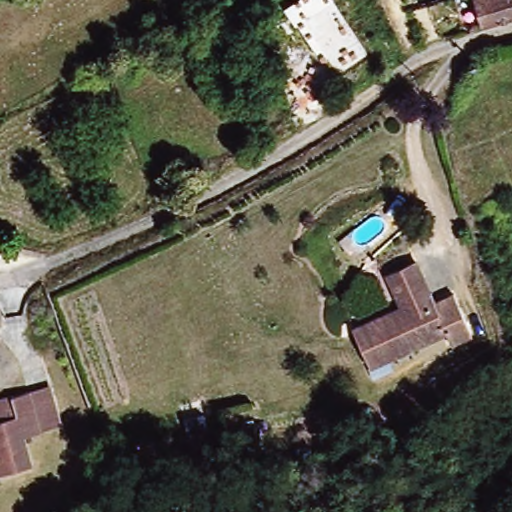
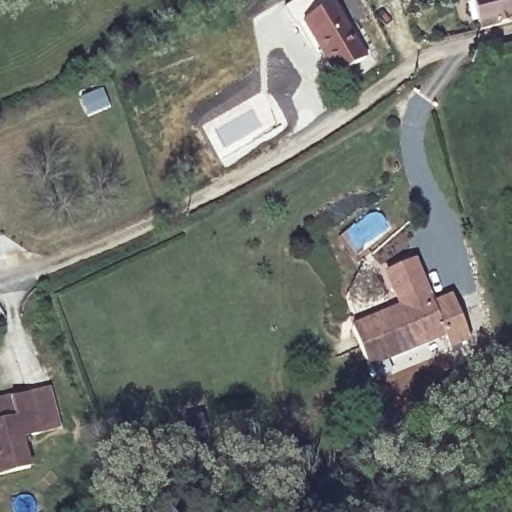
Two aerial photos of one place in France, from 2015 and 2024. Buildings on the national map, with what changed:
new [(303,0),(330,0),(369,59),(341,77),(329,62),(324,66),(299,28),(296,30),(285,12),(303,0)]
unchanged [(487,24),(478,0),(512,0),(512,16),(487,24)]
unchanged [(354,321),(367,316),(401,301),(393,282),(387,266),(416,255),(422,271),(433,300),(454,292),(470,333),(450,341),(446,329),(384,356),(371,362),(354,321)]
unchanged [(0,478),(0,400),(14,397),(30,392),(49,388),(59,428),(41,432),(27,438),(33,469),(0,478)]

